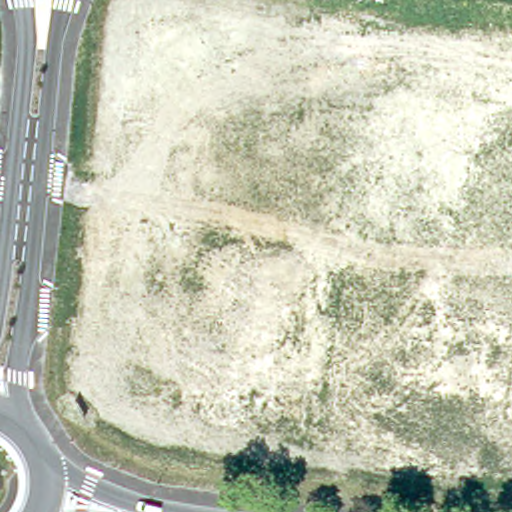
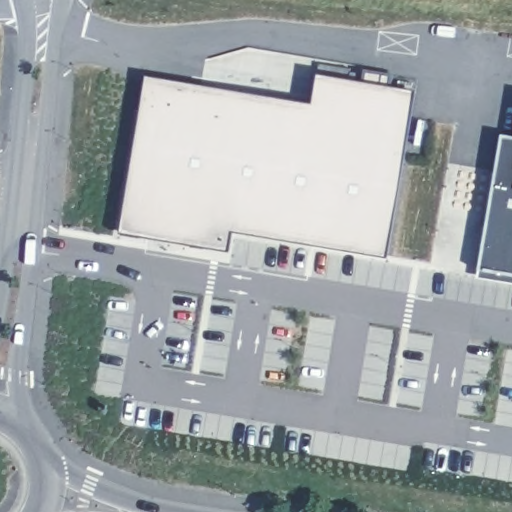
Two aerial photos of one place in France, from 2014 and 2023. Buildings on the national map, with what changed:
new [(326,110),(330,81),(412,95),(387,256),(140,212),(156,113),(142,110),(147,80),(326,110)]
new [(502,136),(512,138),(512,278),(482,273),(502,136)]
demolished [(31,383),(44,384),(46,370),(80,372),(76,388),(93,391),(87,419),(28,411),(31,383)]

